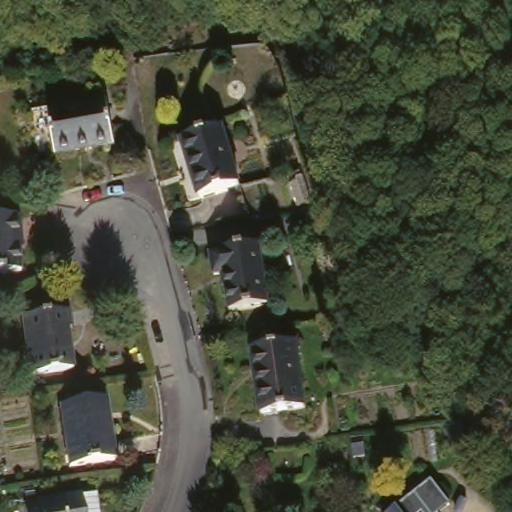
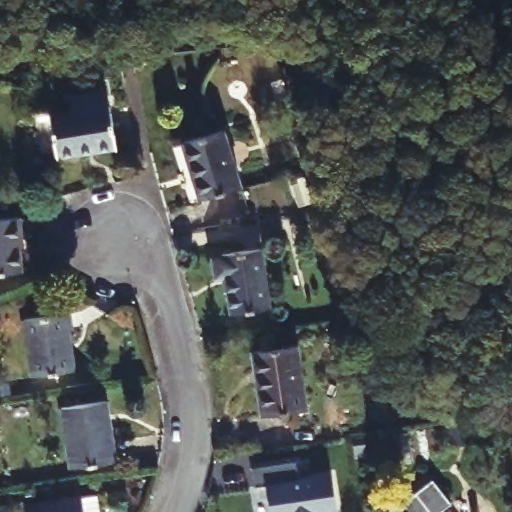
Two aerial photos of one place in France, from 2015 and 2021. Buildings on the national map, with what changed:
unchanged [(115,147),(56,156),(50,116),(109,107),(115,147)]
unchanged [(240,186),(199,199),(181,142),(222,130),(240,186)]
unchanged [(0,274),(0,218),(17,217),(19,238),(15,239),(18,273),(0,274)]
unchanged [(268,307),(231,312),(224,276),(215,277),(211,257),(221,256),(221,254),(260,248),(268,307)]
unchanged [(73,370),(31,377),(23,319),(68,312),(71,330),(67,330),(73,370)]
unchanged [(306,409),(261,415),(252,351),(295,345),(306,409)]
unchanged [(114,460),(70,467),(62,407),(105,401),(114,460)]
new [(471,420),(475,440),(450,443),(447,423),(471,420)]
new [(298,480),(331,476),(336,512),(270,512),(266,486),(254,487),(251,468),(295,462),(298,480)]
unchanged [(435,512),(394,512),(391,507),(427,480),(446,503),(435,512)]
unchanged [(25,512),(24,503),(82,496),(85,512),(25,512)]

